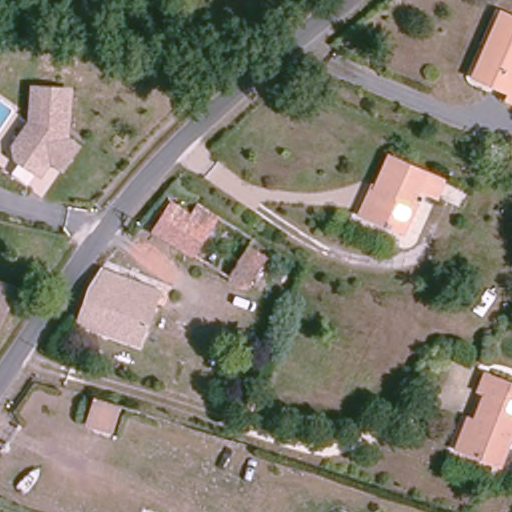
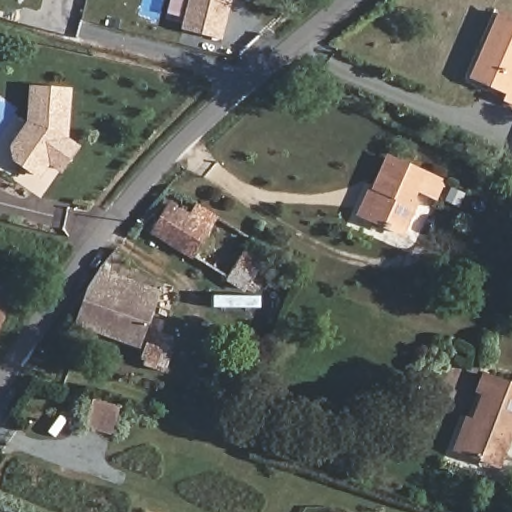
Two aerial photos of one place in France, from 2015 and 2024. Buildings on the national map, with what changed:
new [(224,35),(186,26),(193,0),(235,0),(224,35)]
unchanged [(512,14),(512,74),(479,60),(502,10),(512,14)]
unchanged [(512,99),(505,96),(508,89),(473,72),(479,60),(512,74),(512,99)]
unchanged [(56,170),(44,161),(34,176),(10,160),(8,149),(24,124),(26,89),(63,91),(61,125),(61,139),(72,147),(56,170)]
unchanged [(375,184),(380,186),(393,157),(447,180),(440,195),(421,186),(415,200),(420,204),(407,232),(371,215),(364,212),(375,184)]
unchanged [(240,261),(261,275),(252,290),(231,276),(228,280),(151,231),(168,205),(175,193),(210,215),(215,219),(251,242),(240,261)]
unchanged [(158,290),(143,340),(78,320),(86,290),(102,269),(158,290)]
unchanged [(16,287),(0,324),(0,281),(16,287)]
unchanged [(232,414),(210,407),(192,401),(202,366),(243,378),(232,414)]
unchanged [(477,416),(488,387),(480,385),(487,367),(512,378),(512,439),(503,462),(465,448),(456,444),(468,412),(477,416)]
unchanged [(93,398),(117,406),(109,429),(108,431),(80,422),(81,420),(88,397),(93,398)]

